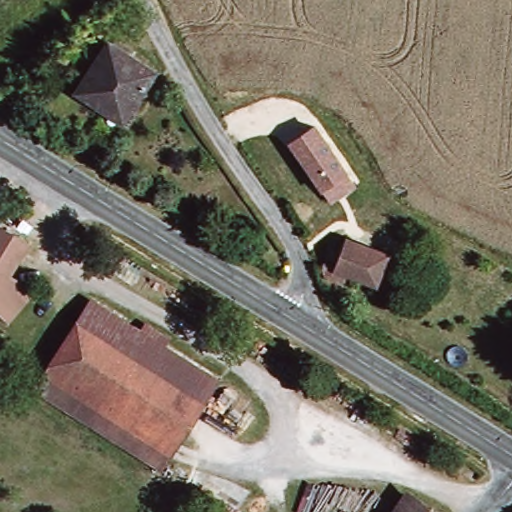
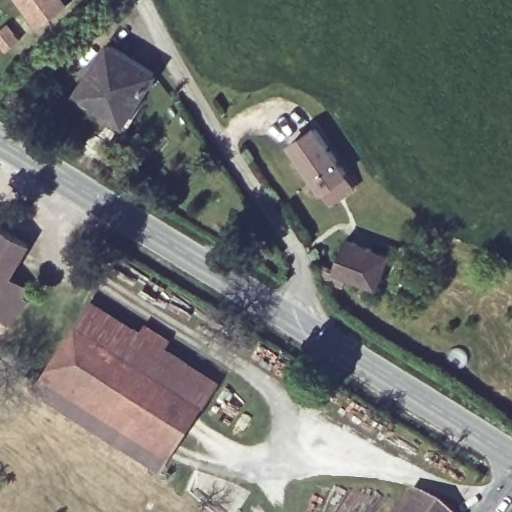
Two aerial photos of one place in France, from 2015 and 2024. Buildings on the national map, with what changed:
new [(38,25),(19,0),(67,0),(68,2),(38,25)]
unchanged [(120,123),(76,91),(109,44),(154,75),(120,123)]
unchanged [(359,186),(331,205),(289,145),(316,125),(359,186)]
unchanged [(21,300),(25,305),(8,326),(0,322),(0,233),(25,249),(6,279),(25,291),(21,300)]
unchanged [(347,239),(389,255),(380,283),(353,274),(346,289),(329,282),(324,263),(338,269),(347,239)]
unchanged [(101,308),(216,382),(159,471),(35,390),(41,381),(48,383),(101,308)]
unchanged [(409,505),(420,512),(404,512),(409,505)]

